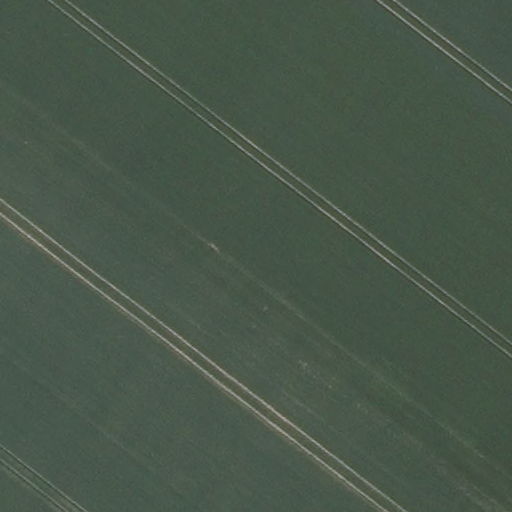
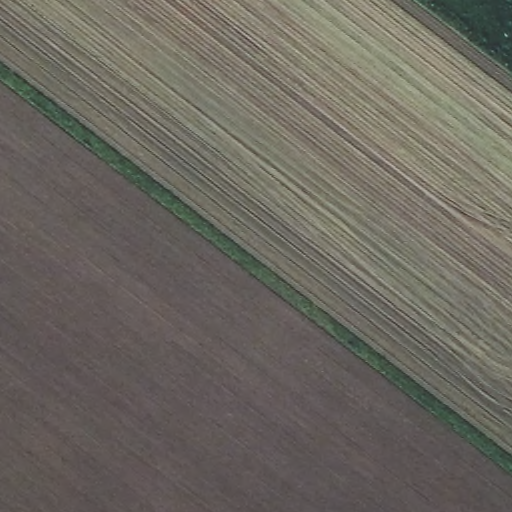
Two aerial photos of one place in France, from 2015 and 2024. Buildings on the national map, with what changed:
[]

